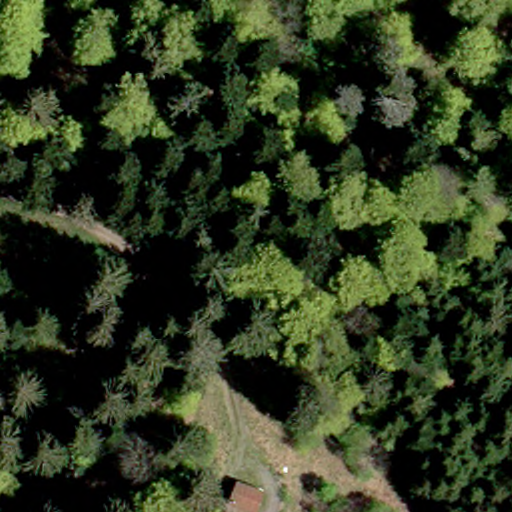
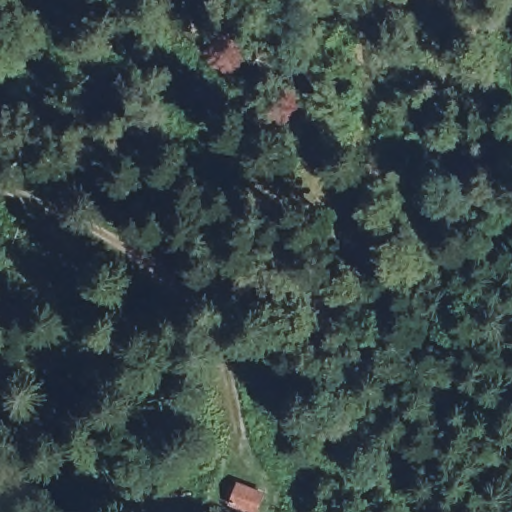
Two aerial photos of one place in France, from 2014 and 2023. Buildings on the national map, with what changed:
unchanged [(257,495),(247,510),(226,498),(237,482),(257,495)]

